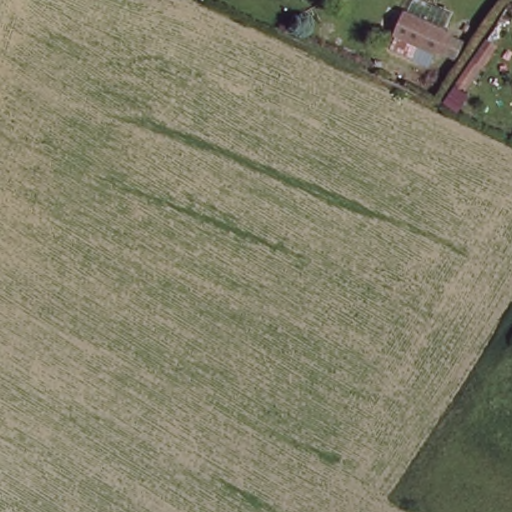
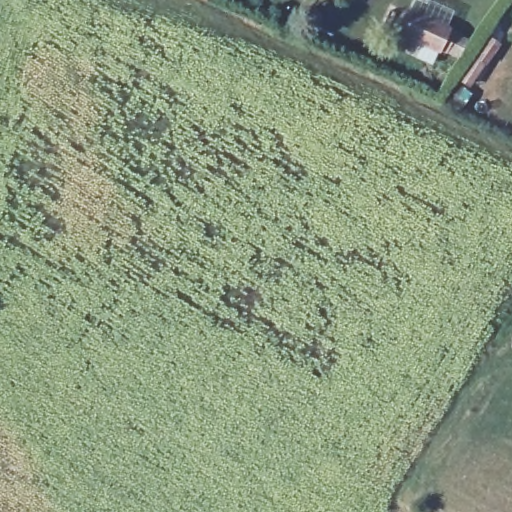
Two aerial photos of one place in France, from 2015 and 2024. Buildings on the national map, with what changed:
unchanged [(458,57),(414,35),(422,17),(467,38),(458,57)]
unchanged [(501,37),(458,101),(445,92),(485,27),(501,37)]

